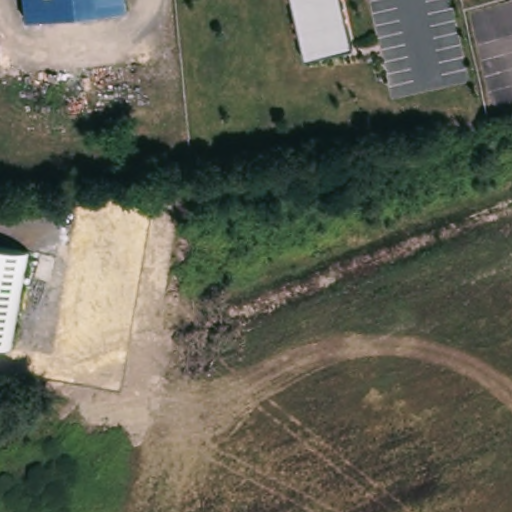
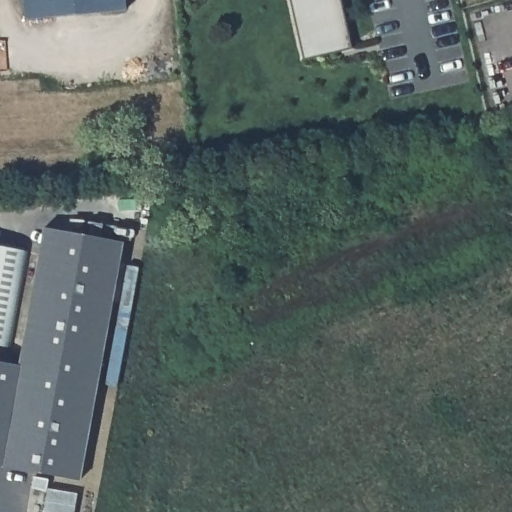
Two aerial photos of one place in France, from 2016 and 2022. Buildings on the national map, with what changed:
unchanged [(126,10),(26,20),(24,0),(126,0),(126,10)]
unchanged [(352,50),(305,60),(291,0),(343,0),(352,50)]
new [(43,227),(121,242),(77,480),(0,466),(0,361),(18,365),(43,227)]
unchanged [(11,349),(0,346),(0,245),(27,249),(11,349)]

